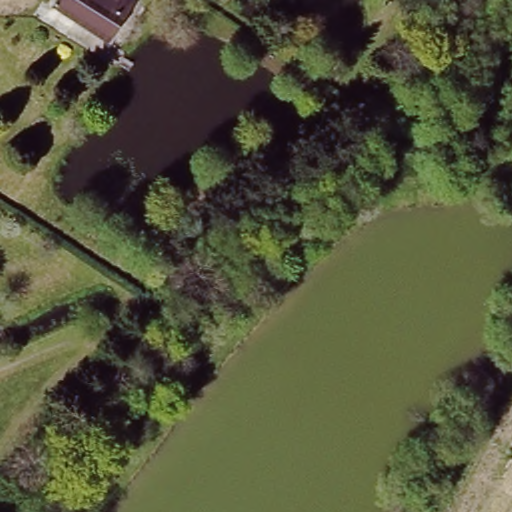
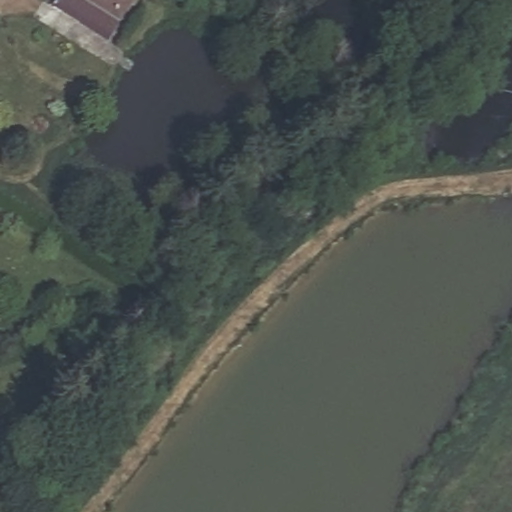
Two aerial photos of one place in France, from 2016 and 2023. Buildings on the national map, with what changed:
unchanged [(60,0),(135,0),(141,4),(113,43),(55,9),(60,0)]

